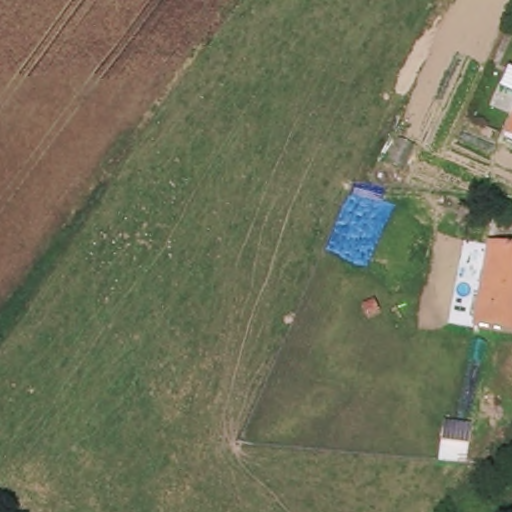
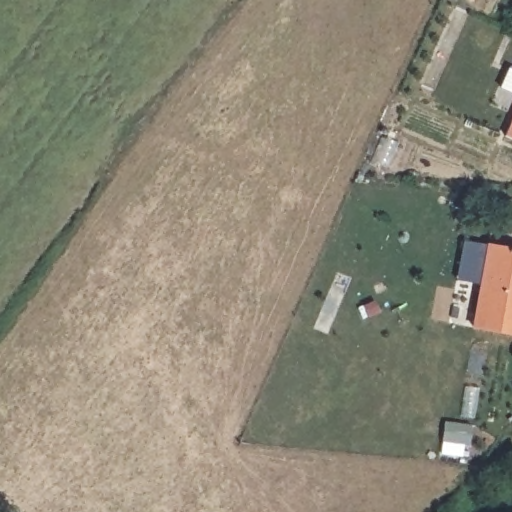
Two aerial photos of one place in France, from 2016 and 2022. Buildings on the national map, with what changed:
unchanged [(512,124),(512,146),(505,144),(512,124)]
unchanged [(488,246),(512,250),(512,331),(475,325),(488,246)]

